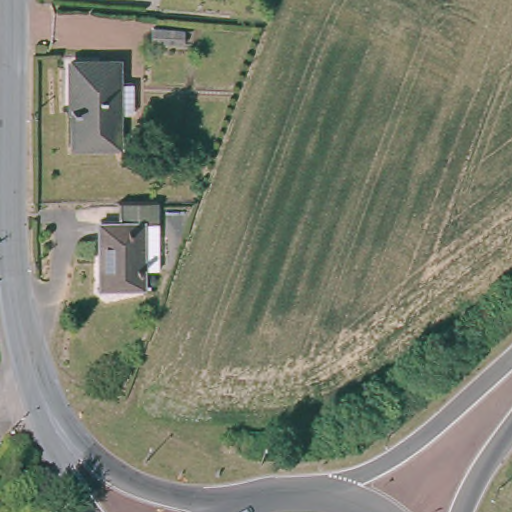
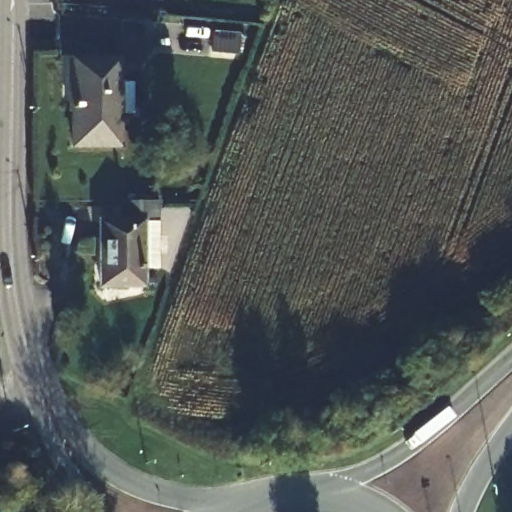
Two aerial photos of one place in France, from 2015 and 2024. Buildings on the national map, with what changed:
unchanged [(152,31),(185,32),(184,51),(151,50),(152,31)]
unchanged [(65,66),(108,67),(108,87),(124,87),(125,118),(108,119),(108,150),(64,150),(65,66)]
unchanged [(157,272),(143,273),(143,288),(96,290),(96,226),(110,226),(110,204),(154,201),(157,272)]

